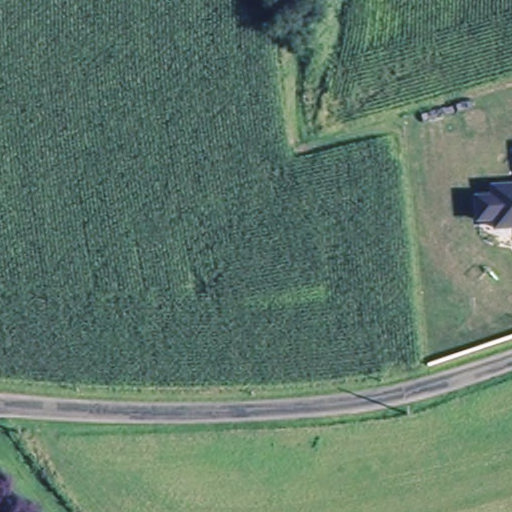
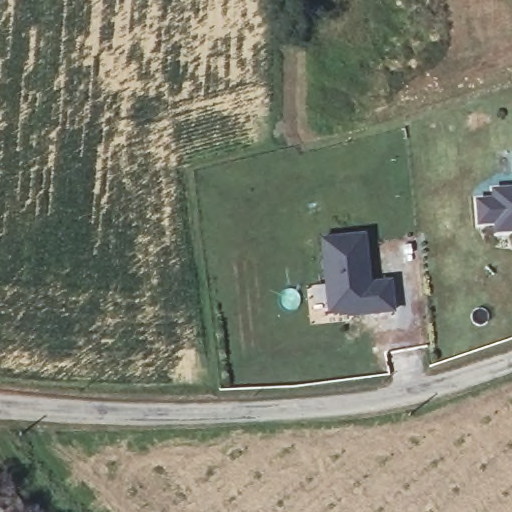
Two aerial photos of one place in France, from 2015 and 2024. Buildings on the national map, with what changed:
unchanged [(493,222),(476,222),(476,200),(493,200),(493,190),(512,190),(512,231),(493,231),(493,222)]
new [(371,282),(392,280),(396,313),(346,317),(344,313),(326,315),(320,238),(366,232),(371,282)]

